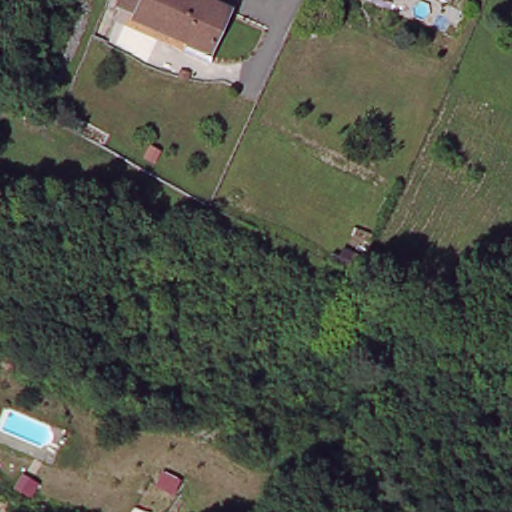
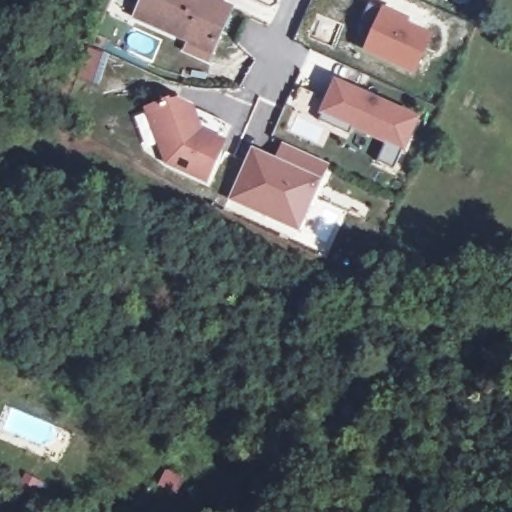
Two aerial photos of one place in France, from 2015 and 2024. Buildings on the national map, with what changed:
unchanged [(185,40),(131,17),(133,13),(117,5),(119,0),(218,0),(215,5),(225,10),(211,41),(203,59),(180,50),(185,40)]
new [(406,23),(405,26),(430,38),(413,74),(368,54),(377,35),(360,28),(370,6),(406,23)]
new [(192,73),(190,80),(181,78),(183,70),(192,73)]
new [(335,81),(415,118),(392,168),(375,159),(385,140),(352,125),(348,133),(317,119),(335,81)]
new [(168,106),(177,103),(191,108),(226,124),(218,140),(224,144),(206,182),(167,164),(147,111),(167,104),(168,106)]
new [(231,199),(246,167),(250,169),(255,156),(275,165),(285,145),(328,164),(298,230),(231,199)]

